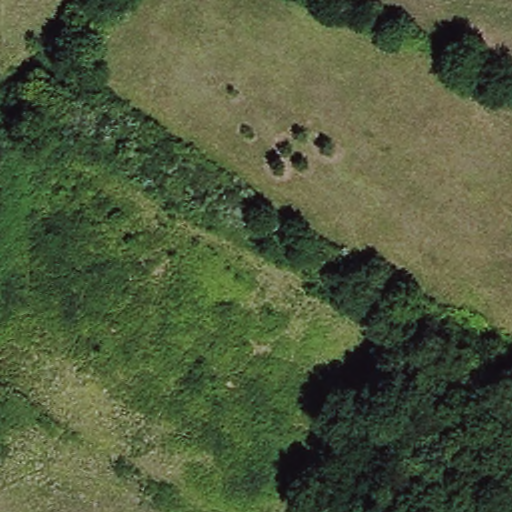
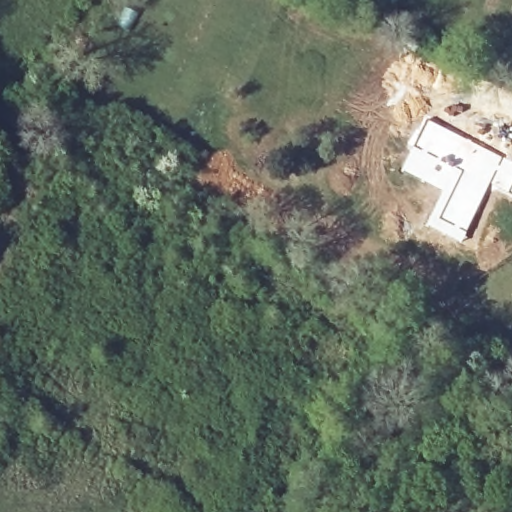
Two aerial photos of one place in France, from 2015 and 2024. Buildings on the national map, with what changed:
new [(427,118),(504,155),(461,243),(425,223),(450,171),(422,153),(429,139),(419,134),(427,118)]

